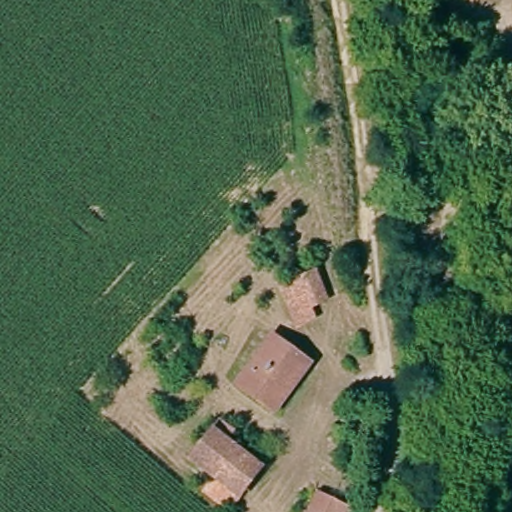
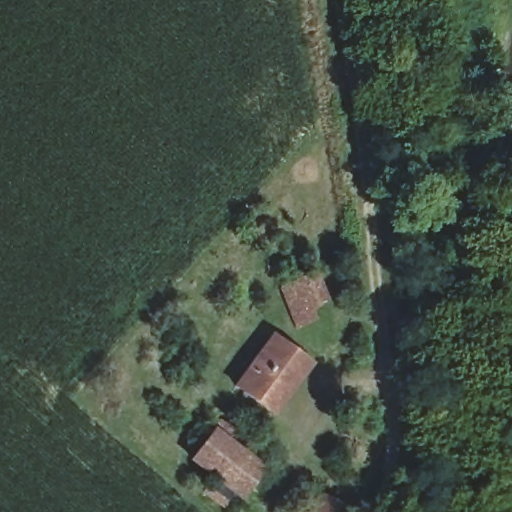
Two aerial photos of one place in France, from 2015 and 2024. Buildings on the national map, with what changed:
unchanged [(327,299),(310,309),(315,320),(294,329),(277,285),(317,265),(327,299)]
unchanged [(311,363),(278,411),(237,381),(270,334),(311,363)]
unchanged [(201,495),(209,484),(184,461),(215,422),(229,433),(223,442),(259,469),(229,512),(224,512),(201,495)]
unchanged [(320,495),(348,512),(311,512),(320,495)]

